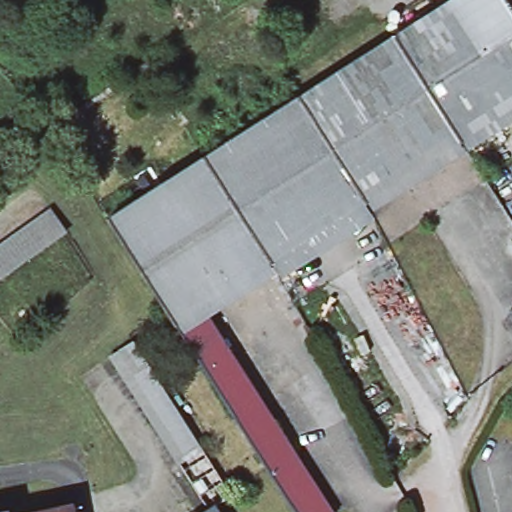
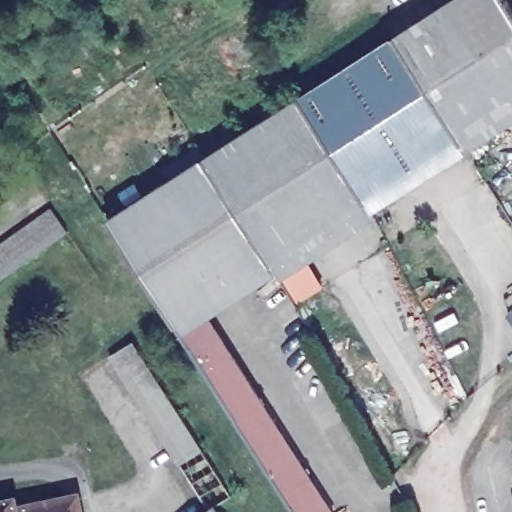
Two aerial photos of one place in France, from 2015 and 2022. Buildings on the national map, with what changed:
unchanged [(456,0),(510,0),(512,2),(512,109),(464,140),(398,37),(456,0)]
unchanged [(398,37),(464,140),(369,201),(304,97),(398,37)]
unchanged [(304,97),(369,201),(274,262),(209,157),(304,97)]
unchanged [(471,150),(464,140),(512,109),(512,123),(471,150)]
unchanged [(209,157),(274,262),(204,306),(178,323),(112,220),(209,157)]
unchanged [(0,276),(0,241),(49,206),(66,229),(0,276)]
unchanged [(204,306),(234,353),(208,371),(178,323),(204,306)]
unchanged [(504,313),(512,308),(512,324),(504,313)]
unchanged [(230,491),(214,501),(221,512),(194,512),(206,505),(108,351),(131,336),(230,491)]
unchanged [(234,353),(335,512),(298,512),(208,371),(234,353)]
unchanged [(512,411),(512,427),(509,412),(512,411)]
unchanged [(73,512),(32,512),(71,504),(73,512)]
unchanged [(6,512),(0,512),(0,511),(5,510),(6,512)]

